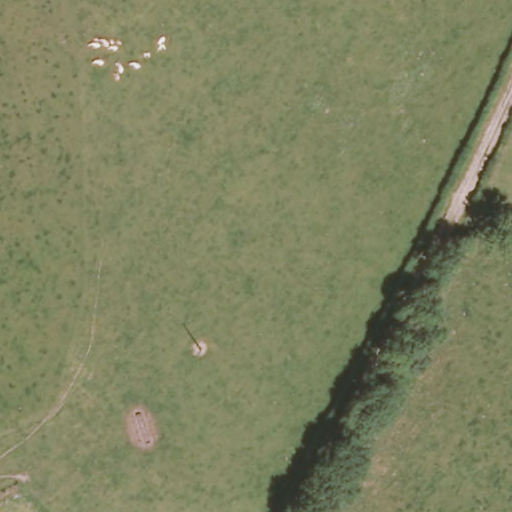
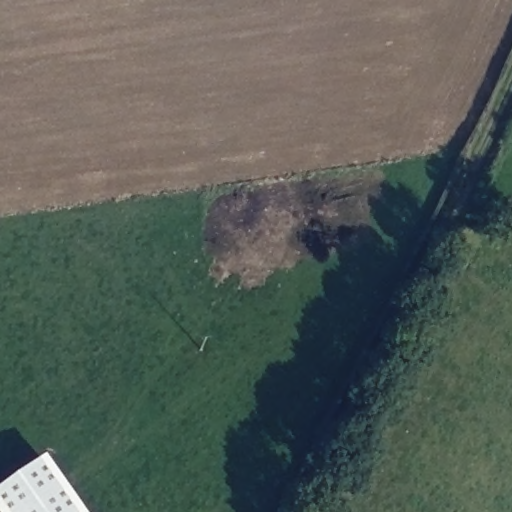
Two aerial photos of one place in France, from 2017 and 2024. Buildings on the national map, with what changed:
new [(82,512),(0,512),(0,489),(45,458),(82,512)]

